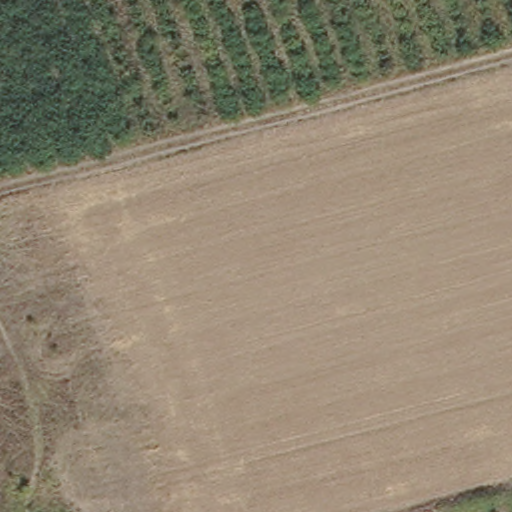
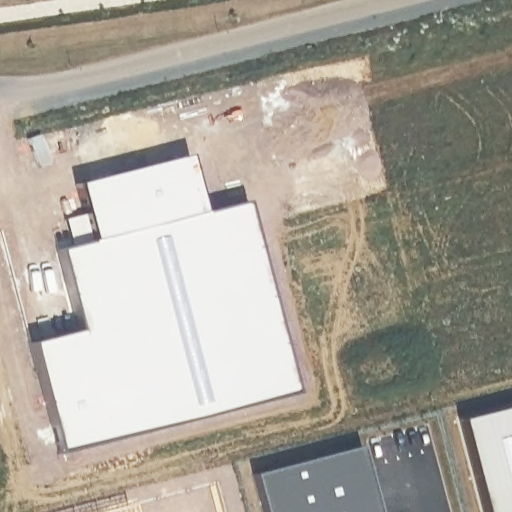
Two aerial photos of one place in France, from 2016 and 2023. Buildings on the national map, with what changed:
new [(512,83),(512,331),(437,352),(376,116),(512,83)]
new [(189,155),(203,213),(245,204),(292,392),(62,454),(32,345),(81,331),(61,249),(95,241),(79,183),(189,155)]
new [(512,407),(512,512),(485,512),(463,421),(512,407)]
new [(355,448),(368,512),(265,512),(256,472),(355,448)]
new [(216,482),(224,512),(104,512),(216,482)]

